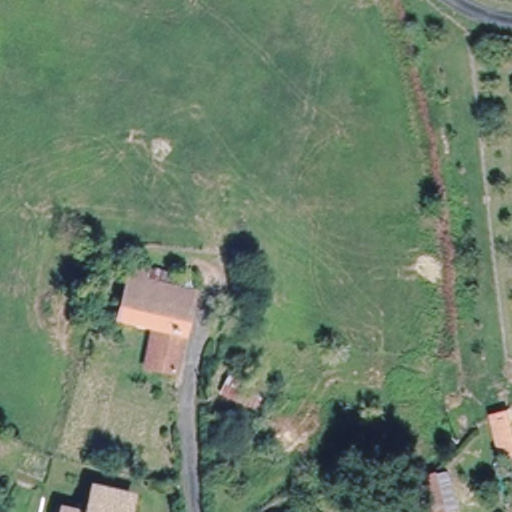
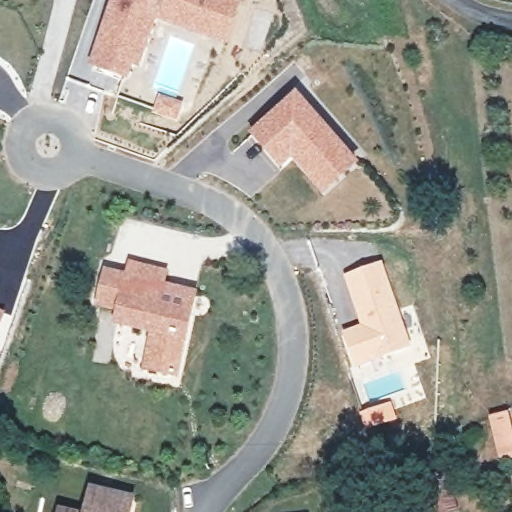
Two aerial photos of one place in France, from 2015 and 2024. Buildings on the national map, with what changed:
new [(157,18),(139,67),(134,64),(127,79),(90,65),(113,0),(243,0),(229,42),(157,18)]
new [(363,163),(326,195),(294,159),(280,168),(250,130),(299,91),(363,163)]
unchanged [(512,127),(512,138),(501,141),(497,126),(511,123),(512,127)]
new [(359,323),(343,273),(383,262),(413,346),(354,366),(343,329),(359,323)]
unchanged [(145,366),(154,330),(118,321),(131,264),(146,267),(195,280),(193,291),(175,373),(145,366)]
new [(0,330),(0,307),(6,309),(0,330)]
demolished [(253,408),(220,391),(229,376),(244,385),(247,381),(263,390),(253,408)]
new [(391,401),(398,419),(365,429),(359,412),(391,401)]
unchanged [(508,413),(512,431),(512,454),(501,457),(493,417),(508,413)]
unchanged [(446,475),(454,511),(450,512),(438,512),(429,479),(446,475)]
unchanged [(125,512),(84,512),(88,494),(126,503),(125,512)]

